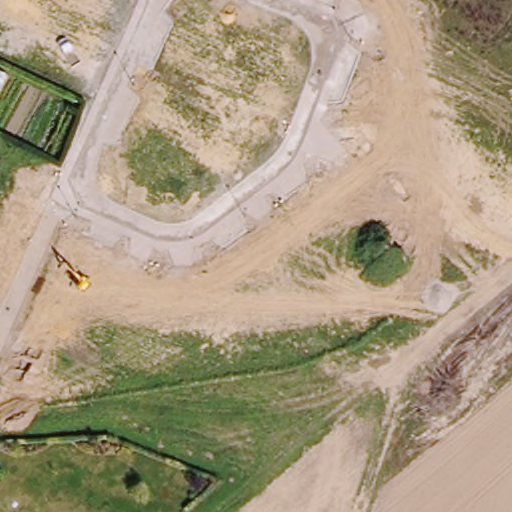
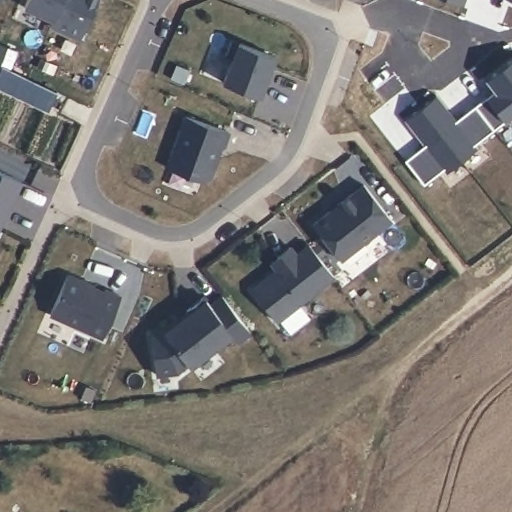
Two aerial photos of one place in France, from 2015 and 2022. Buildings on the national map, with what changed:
new [(28,0),(98,0),(81,39),(51,26),(54,20),(25,7),(28,0)]
new [(231,62),(224,59),(229,44),(272,60),(258,100),(222,87),(231,62)]
new [(57,92),(48,110),(0,87),(0,72),(3,66),(57,92)]
new [(184,122),(227,137),(221,153),(219,152),(207,183),(201,186),(165,173),(184,122)]
new [(0,226),(0,172),(21,182),(0,226)]
new [(365,186),(392,222),(341,262),(314,226),(365,186)]
new [(271,263),(277,258),(291,248),(297,256),(310,246),(334,278),(277,323),(252,291),(277,272),(271,263)]
new [(67,277),(104,293),(105,291),(120,298),(102,339),(49,316),(67,277)]
new [(161,334),(187,313),(186,312),(204,298),(213,309),(225,300),(250,332),(237,342),(231,335),(186,371),(183,368),(175,374),(154,376),(151,335),(161,334)]

